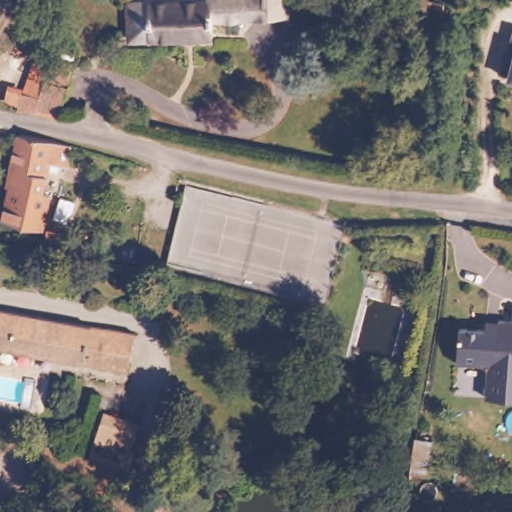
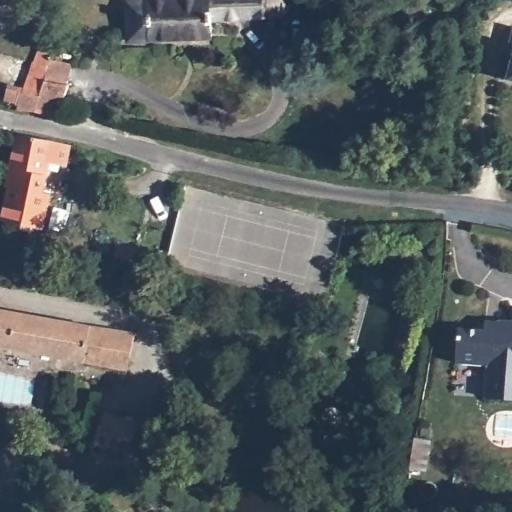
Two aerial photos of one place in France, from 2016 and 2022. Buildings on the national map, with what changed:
unchanged [(209,31),(128,37),(127,0),(138,0),(264,0),(287,0),(288,0),(287,8),(265,10),(245,11),(208,15),(209,31)]
unchanged [(511,60),(505,58),(508,46),(512,32),(512,82),(506,80),(511,60)]
unchanged [(36,104),(20,106),(19,94),(22,82),(27,83),(35,53),(51,56),(53,49),(75,55),(70,76),(63,109),(36,104)]
unchanged [(9,186),(6,184),(17,132),(59,142),(54,176),(43,175),(40,188),(50,190),(40,225),(1,213),(9,186)]
unchanged [(42,229),(76,233),(76,249),(42,243),(42,229)]
unchanged [(135,331),(129,368),(0,347),(0,307),(135,331)]
unchanged [(500,321),(501,320),(512,321),(512,399),(486,397),(488,367),(486,365),(457,362),(460,327),(498,330),(500,321)]
unchanged [(89,453),(102,406),(136,415),(109,490),(40,465),(47,439),(89,453)]
unchanged [(412,437),(428,440),(422,471),(407,468),(412,437)]

